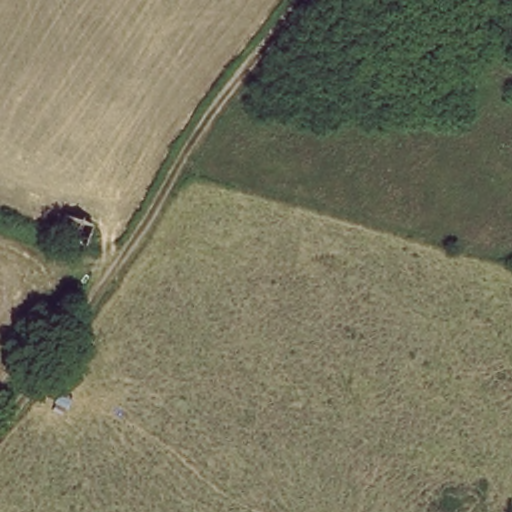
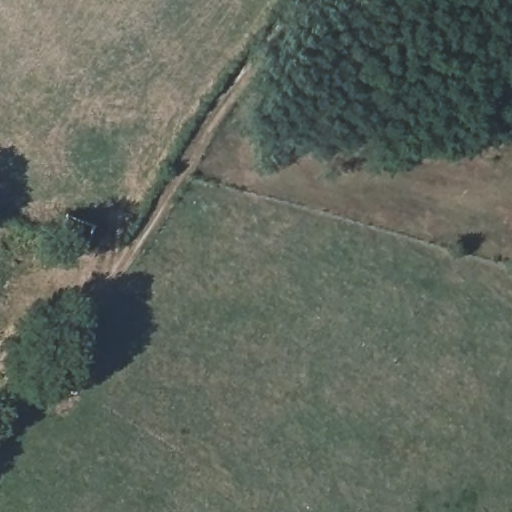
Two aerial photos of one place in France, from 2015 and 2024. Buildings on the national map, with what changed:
unchanged [(70,210),(95,221),(90,237),(75,232),(62,227),(70,210)]

